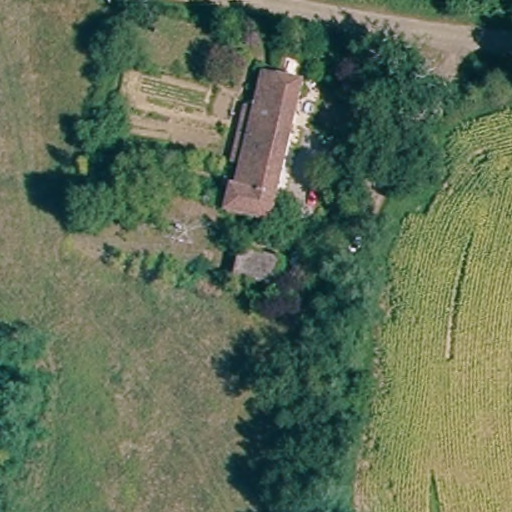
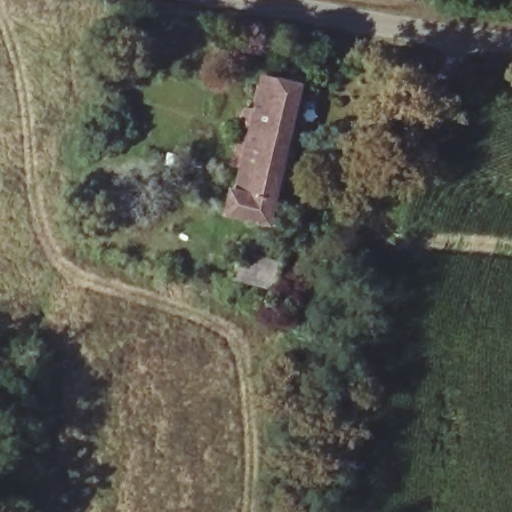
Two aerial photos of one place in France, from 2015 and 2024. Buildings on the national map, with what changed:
unchanged [(239,187),(262,75),(302,82),(271,222),(225,213),(230,185),(239,187)]
unchanged [(286,265),(280,293),(234,283),(239,256),(286,265)]

